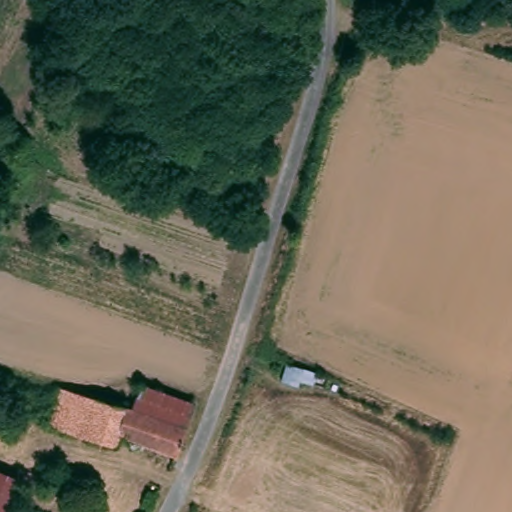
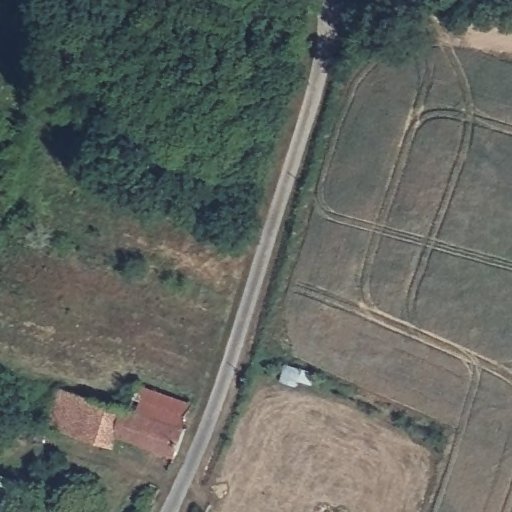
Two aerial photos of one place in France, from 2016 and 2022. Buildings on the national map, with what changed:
unchanged [(119,403),(126,405),(181,424),(171,453),(113,433),(108,446),(42,422),(54,383),(104,399),(119,403)]
unchanged [(19,481),(7,512),(0,512),(0,474),(19,481)]

